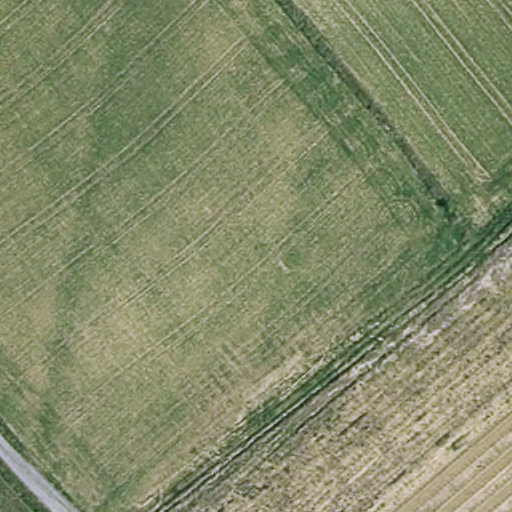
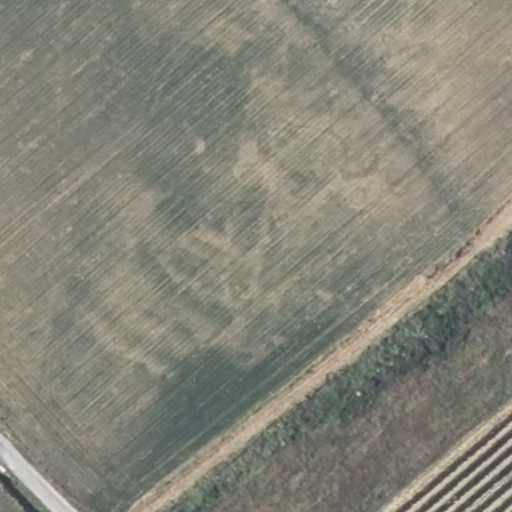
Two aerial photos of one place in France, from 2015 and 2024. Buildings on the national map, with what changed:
[]

